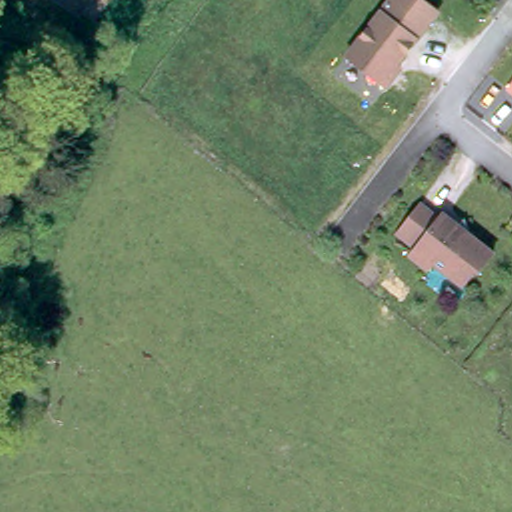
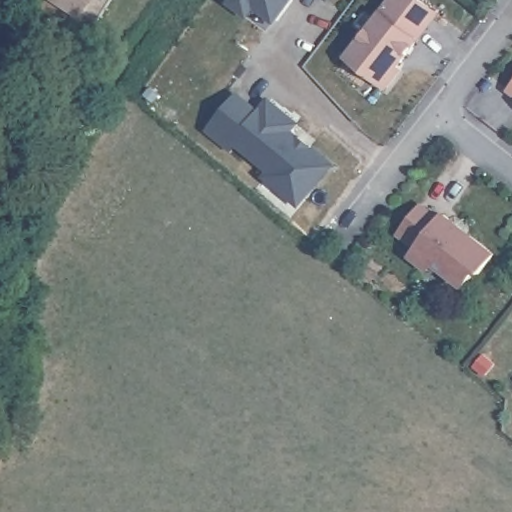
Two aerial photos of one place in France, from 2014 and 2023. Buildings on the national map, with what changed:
unchanged [(58,0),(89,0),(87,3),(78,14),(58,0)]
new [(255,10),(248,19),(227,3),(229,0),(293,0),(274,24),(255,10)]
unchanged [(401,66),(388,83),(348,52),(390,0),(425,0),(437,9),(395,62),(401,66)]
unchanged [(512,81),(512,89),(508,86),(512,81)]
new [(302,124),(295,133),(336,165),(300,209),(263,177),(267,171),(237,146),(232,152),(206,131),(237,92),(258,109),(268,98),(302,124)]
unchanged [(482,270),(477,268),(466,283),(435,259),(430,265),(412,250),(418,244),(398,229),(423,199),(442,214),(446,210),(497,250),(482,270)]

